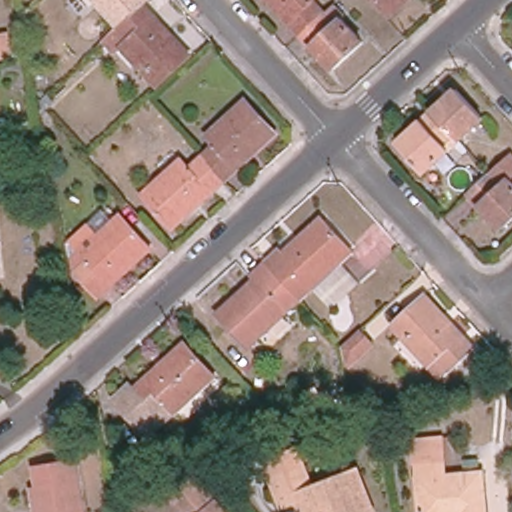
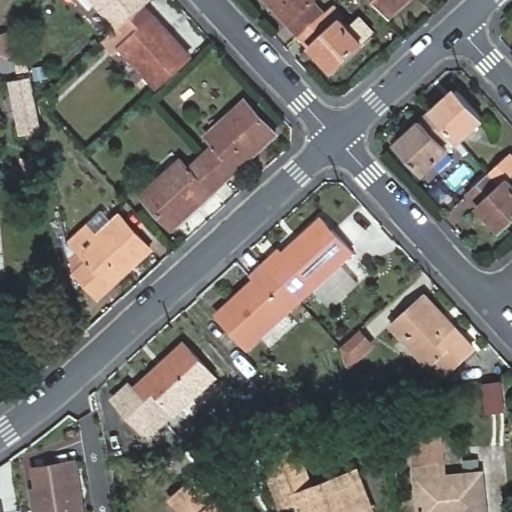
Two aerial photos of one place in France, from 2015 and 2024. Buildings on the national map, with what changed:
unchanged [(144,3),(140,7),(120,25),(119,26),(95,0),(147,0),(144,3)]
unchanged [(325,13),(301,35),(291,24),(297,19),(280,0),(275,6),(269,0),(314,0),(325,13)]
unchanged [(390,15),(376,0),(407,0),(390,15)]
unchanged [(140,7),(144,3),(156,16),(151,20),(166,36),(171,32),(191,55),(158,86),(122,47),(131,39),(120,25),(140,7)]
unchanged [(363,42),(334,70),(301,35),(325,13),(330,9),(335,5),(345,15),(341,19),(363,42)]
unchanged [(10,55),(0,57),(0,33),(7,31),(10,55)]
new [(41,131),(21,134),(11,80),(32,75),(41,131)]
unchanged [(485,119),(460,140),(432,110),(457,89),(485,119)]
unchanged [(277,133),(255,153),(250,149),(234,164),(238,169),(225,180),(223,177),(203,156),(216,145),(207,135),(246,99),(277,133)]
unchanged [(425,173),(397,143),(432,110),(460,140),(425,173)]
unchanged [(490,174),(512,153),(512,177),(510,178),(512,180),(512,220),(502,230),(468,193),(490,174)]
unchanged [(212,192),(209,188),(192,203),(196,207),(174,228),(142,195),(181,159),(190,168),(203,156),(223,177),(225,180),(212,192)]
unchanged [(280,250),(287,259),(306,242),(301,237),(322,218),(353,252),(341,262),(313,287),(300,300),(266,262),(267,262),(280,250)]
unchanged [(134,274),(130,270),(113,285),(117,290),(103,302),(78,275),(77,270),(76,266),(87,256),(76,245),(94,230),(104,241),(126,220),(156,253),(134,274)]
unchanged [(249,347),(218,313),(239,294),(244,300),(262,283),(254,274),(266,262),(300,300),(249,347)]
unchanged [(332,308),(313,287),(341,262),(361,282),(332,308)]
unchanged [(475,347),(450,370),(438,357),(429,365),(392,326),(426,295),(475,347)]
unchanged [(373,345),(347,368),(342,346),(360,330),(373,345)]
unchanged [(151,437),(115,398),(129,385),(135,390),(144,381),(147,385),(176,357),(172,354),(185,342),(216,376),(151,437)]
unchanged [(447,438),(450,475),(488,471),(492,512),(426,512),(419,440),(447,438)]
unchanged [(303,512),(298,501),(282,507),(265,463),(297,450),(305,469),(312,488),(358,470),(375,511),(374,512),(303,512)]
unchanged [(34,488),(38,488),(35,466),(75,460),(84,512),(37,512),(37,509),(34,488)]
unchanged [(202,478),(232,512),(190,512),(179,500),(202,478)]
new [(6,512),(0,512),(0,509),(5,508),(6,512)]

